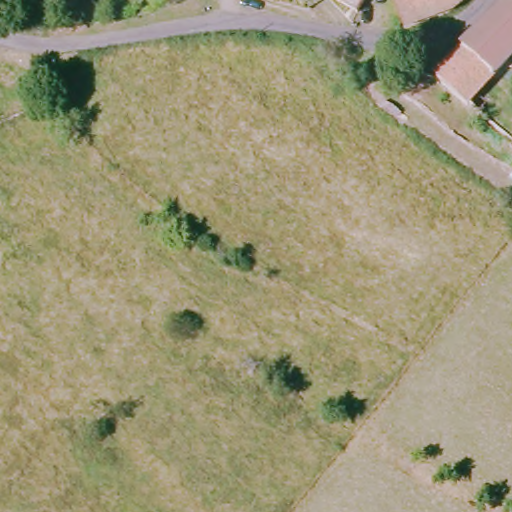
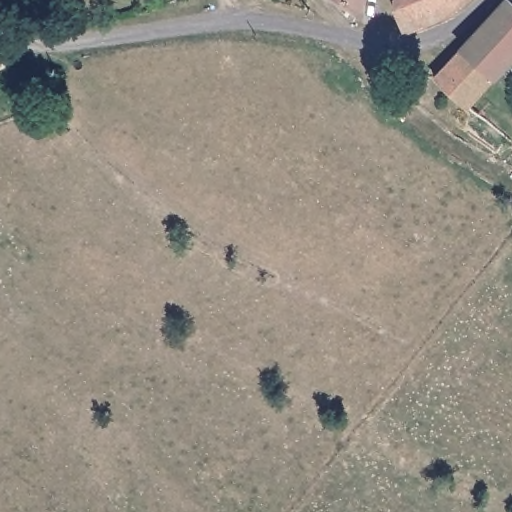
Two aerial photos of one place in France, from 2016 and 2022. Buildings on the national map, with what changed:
unchanged [(326,0),(362,0),(348,21),(326,0)]
unchanged [(448,24),(402,35),(396,29),(401,0),(474,0),(474,1),(448,24)]
unchanged [(512,61),(488,88),(471,106),(451,88),(437,76),(505,0),(511,0),(512,1),(512,61)]

